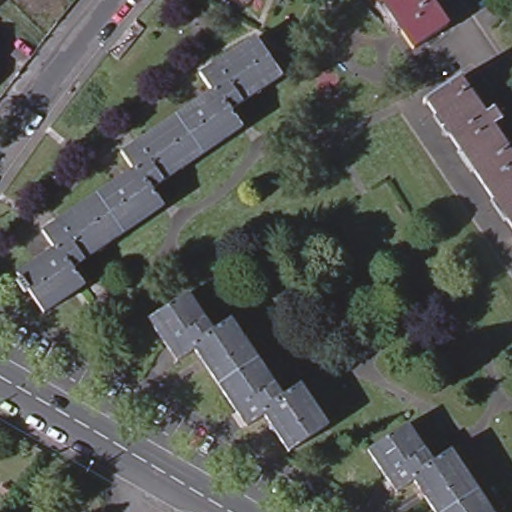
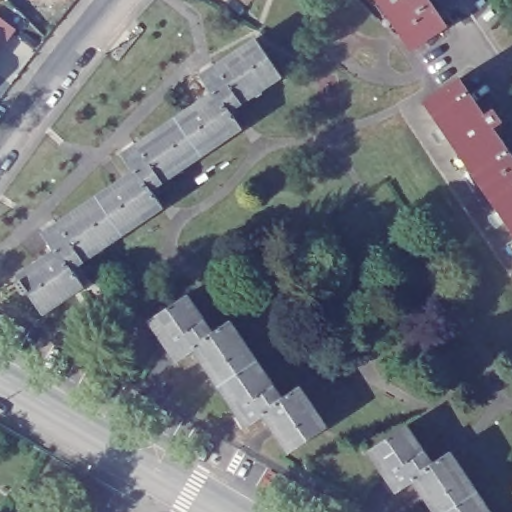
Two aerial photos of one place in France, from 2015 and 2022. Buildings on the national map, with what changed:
unchanged [(241,0),(249,0),(245,4),(241,0)]
unchanged [(411,50),(378,0),(427,0),(445,27),(411,50)]
unchanged [(16,26),(0,44),(0,15),(16,26)]
unchanged [(198,74),(254,37),(280,77),(227,111),(214,90),(210,93),(198,74)]
unchanged [(422,100),(456,77),(482,115),(489,110),(488,109),(490,107),(500,121),(498,122),(497,121),(490,126),(512,159),(512,229),(426,102),(425,104),(422,100)]
unchanged [(214,90),(227,111),(238,129),(198,155),(174,117),(210,93),(214,90)]
unchanged [(198,155),(147,187),(135,170),(132,172),(119,152),(174,117),(198,155)]
unchanged [(135,170),(147,187),(161,210),(121,236),(95,196),(132,172),(135,170)]
unchanged [(121,236),(70,269),(56,247),(52,250),(40,232),(95,196),(121,236)]
unchanged [(56,247),(70,269),(82,286),(41,313),(26,291),(22,295),(13,281),(19,278),(16,273),(52,250),(56,247)]
unchanged [(212,327),(191,341),(193,345),(175,357),(147,316),(186,290),(212,327)]
unchanged [(229,316),(256,355),(218,381),(193,345),(191,341),(212,327),(229,316)]
unchanged [(281,393),(260,407),(263,411),(246,422),(218,381),(256,355),(281,393)]
unchanged [(299,381),(326,421),(287,447),(263,411),(260,407),(281,393),(299,381)]
unchanged [(432,457),(411,471),(413,474),(394,486),(367,445),(407,419),(432,457)]
unchanged [(450,445),(476,485),(437,511),(413,474),(411,471),(432,457),(450,445)]
unchanged [(493,512),(438,512),(437,511),(476,485),(493,512)]

